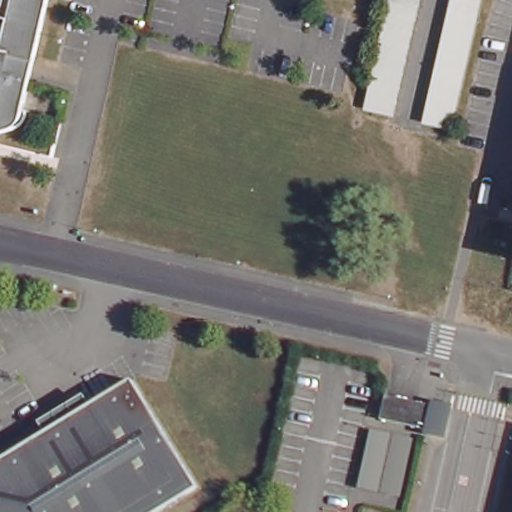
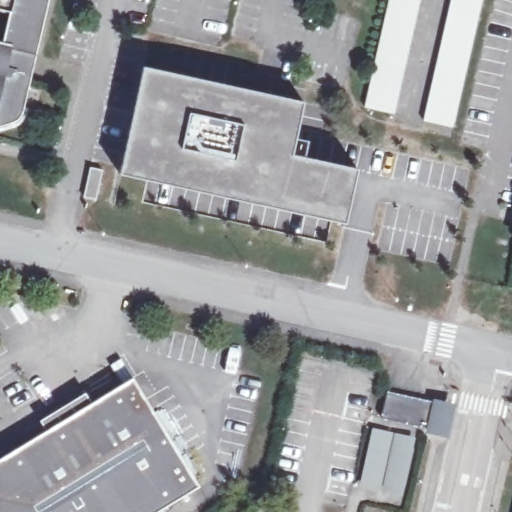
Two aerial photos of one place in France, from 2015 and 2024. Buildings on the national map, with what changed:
unchanged [(19,114),(16,118),(8,122),(0,124),(0,26),(3,11),(0,10),(0,0),(46,0),(19,114)]
unchanged [(416,7),(390,1),(390,0),(418,0),(416,7)]
unchanged [(480,22),(452,15),(455,0),(485,0),(480,22)]
unchanged [(416,7),(394,118),(367,111),(390,1),(416,7)]
unchanged [(480,22),(456,131),(426,125),(452,15),(480,22)]
new [(357,169),(346,224),(121,175),(144,67),(303,103),(291,155),(357,169)]
new [(92,166),(104,169),(97,199),(85,196),(92,166)]
unchanged [(138,381),(203,486),(161,512),(0,512),(0,467),(138,381)]
unchanged [(443,403),(437,428),(381,416),(387,391),(443,403)]
unchanged [(405,495),(361,485),(373,434),(416,443),(405,495)]

